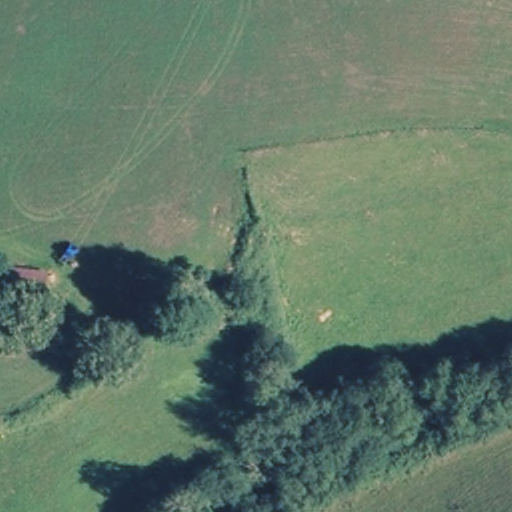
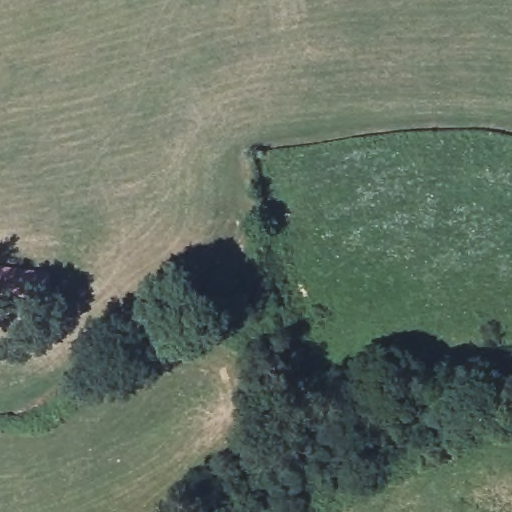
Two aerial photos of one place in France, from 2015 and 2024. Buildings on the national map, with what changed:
unchanged [(25,296),(0,293),(0,266),(5,266),(30,271),(25,296)]

